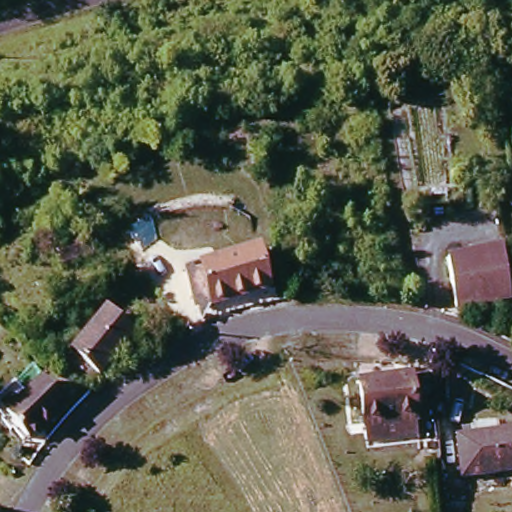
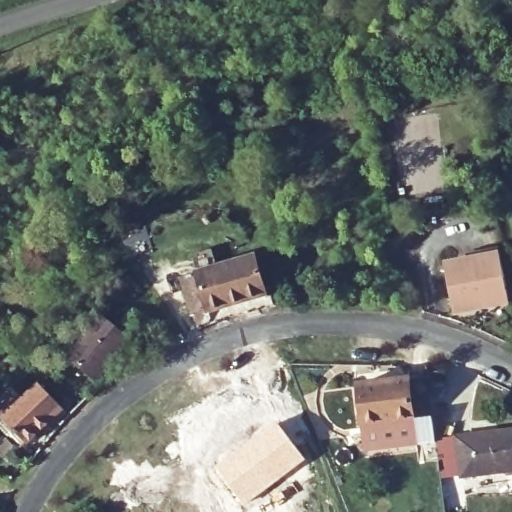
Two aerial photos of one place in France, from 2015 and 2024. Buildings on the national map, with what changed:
unchanged [(63,252),(93,238),(101,252),(71,265),(63,252)]
unchanged [(451,306),(449,259),(471,259),(471,247),(507,247),(507,259),(509,304),(451,306)]
unchanged [(239,302),(206,313),(194,279),(249,261),(259,287),(262,295),(239,302)]
unchanged [(130,344),(101,378),(79,359),(108,325),(130,344)]
unchanged [(420,420),(422,436),(371,440),(365,382),(435,375),(440,419),(420,420)]
unchanged [(49,387),(67,408),(32,442),(9,419),(5,422),(0,419),(0,416),(16,401),(25,407),(49,387)]
new [(276,420),(306,460),(245,507),(214,466),(276,420)]
unchanged [(466,435),(512,432),(512,469),(469,472),(466,435)]

